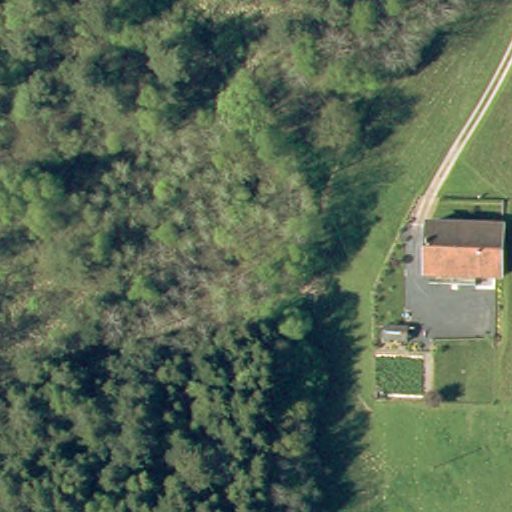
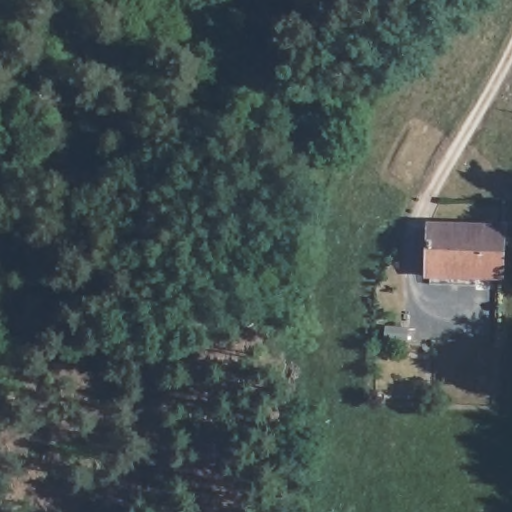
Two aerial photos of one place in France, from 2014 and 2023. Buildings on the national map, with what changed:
unchanged [(446,280),(431,278),(432,250),(416,249),(423,238),(435,237),(436,222),(508,233),(503,287),(464,282),(463,292),(445,291),(446,280)]

